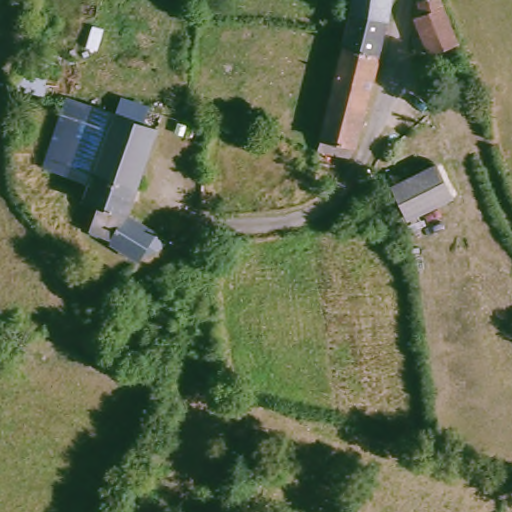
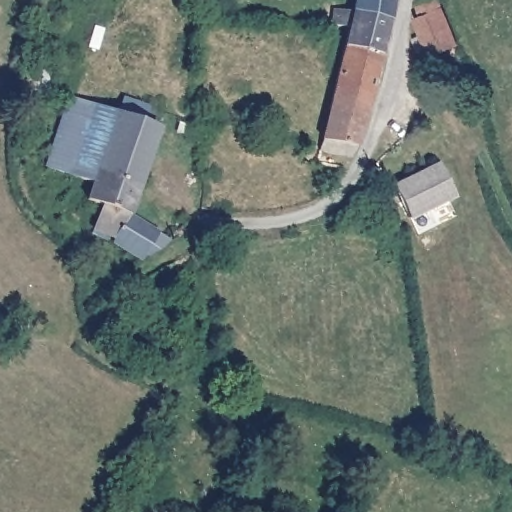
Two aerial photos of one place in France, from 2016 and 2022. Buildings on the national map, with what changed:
unchanged [(358,8),(359,0),(406,0),(401,17),(358,8)]
unchanged [(429,60),(419,44),(426,41),(422,28),(432,23),(424,7),(435,0),(444,0),(452,14),(469,44),(442,61),(429,60)]
unchanged [(354,164),(334,157),(337,151),(324,147),(334,103),(338,89),(354,25),(337,25),(341,5),(358,8),(401,17),(389,69),(379,99),(374,115),(362,150),(354,164)]
unchanged [(40,104),(13,99),(16,71),(46,74),(40,104)]
unchanged [(105,242),(108,237),(87,229),(97,204),(80,200),(86,182),(39,166),(65,99),(158,129),(127,216),(156,232),(138,263),(105,242)]
unchanged [(403,192),(439,166),(458,192),(417,221),(403,192)]

